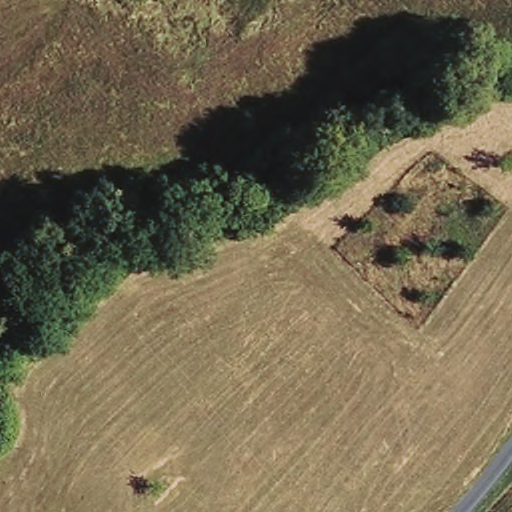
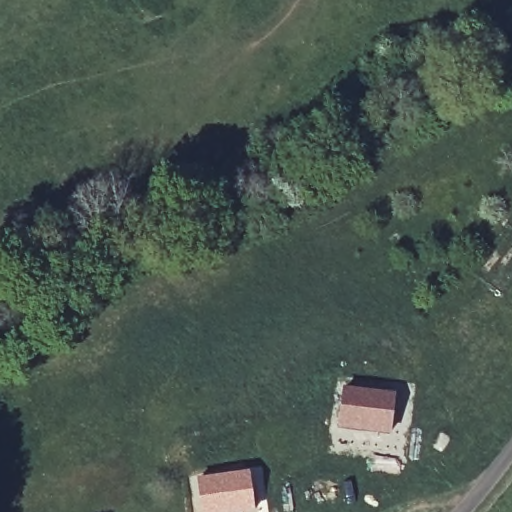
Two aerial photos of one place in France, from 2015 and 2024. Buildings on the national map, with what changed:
new [(343,386),(397,392),(392,435),(338,428),(343,386)]
new [(251,469),(256,512),(199,512),(196,477),(251,469)]

